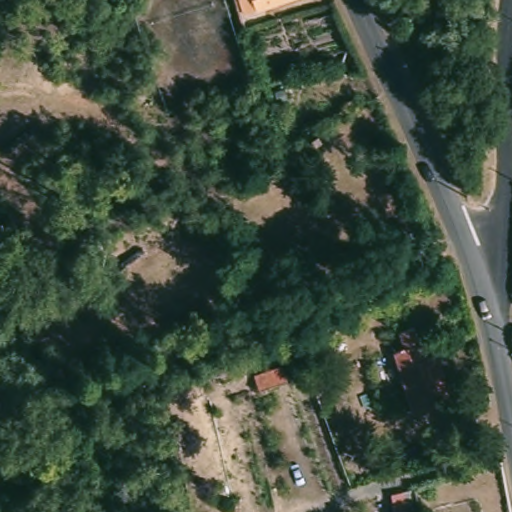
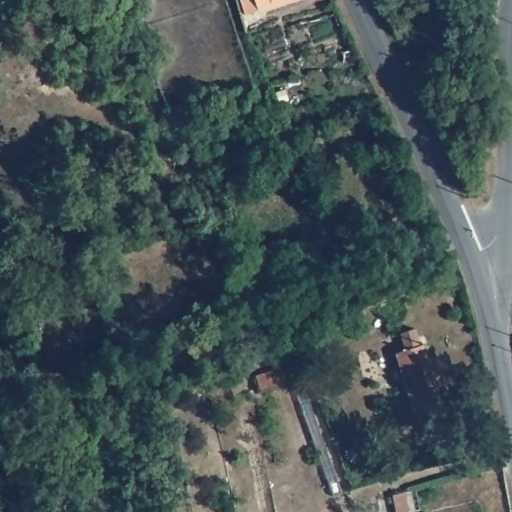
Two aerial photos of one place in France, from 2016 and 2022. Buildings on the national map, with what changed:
unchanged [(251,21),(244,0),(312,0),(251,21)]
unchanged [(436,364),(445,361),(460,409),(425,420),(405,357),(414,354),(408,337),(423,333),(428,349),(431,348),(436,364)]
unchanged [(282,369),(287,381),(259,391),(254,379),(282,369)]
unchanged [(398,491),(401,510),(391,512),(387,493),(398,491)]

